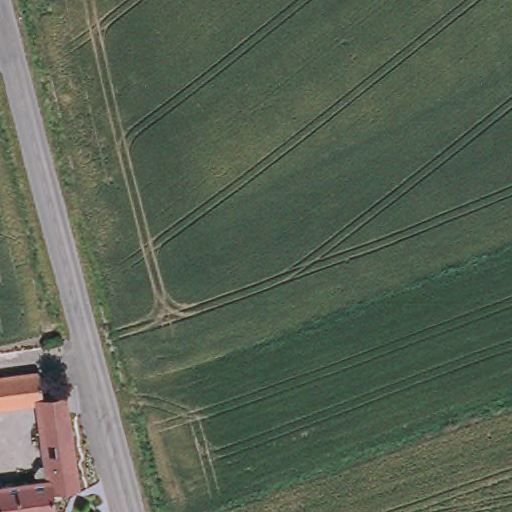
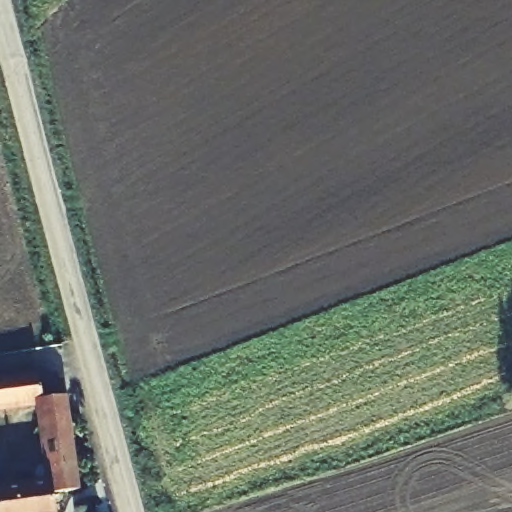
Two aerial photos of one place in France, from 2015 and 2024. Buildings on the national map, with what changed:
unchanged [(40,372),(43,397),(68,395),(80,490),(55,491),(56,512),(0,512),(0,486),(45,480),(35,405),(0,410),(0,377),(40,372)]

